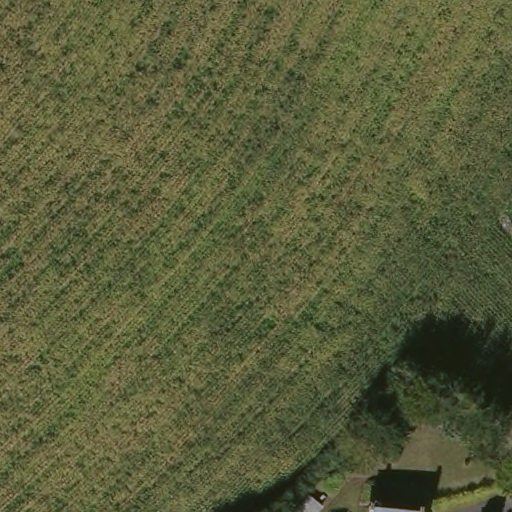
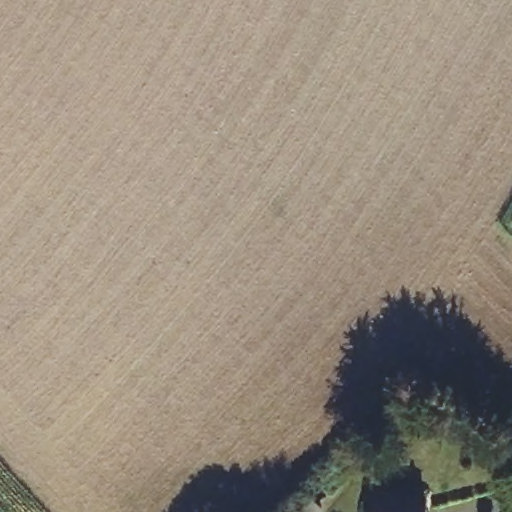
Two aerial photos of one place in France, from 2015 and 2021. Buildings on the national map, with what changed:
unchanged [(423,512),(372,512),(372,490),(424,493),(423,512)]

